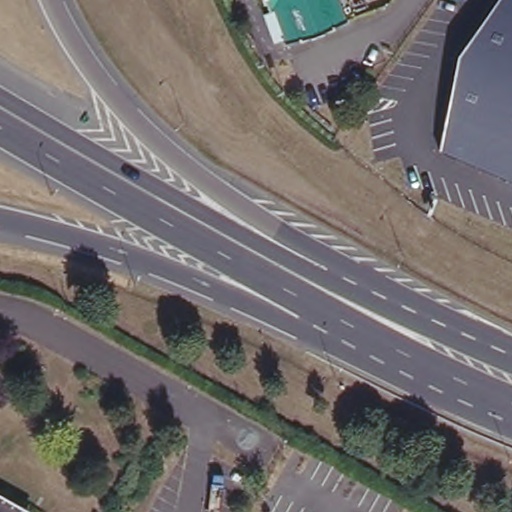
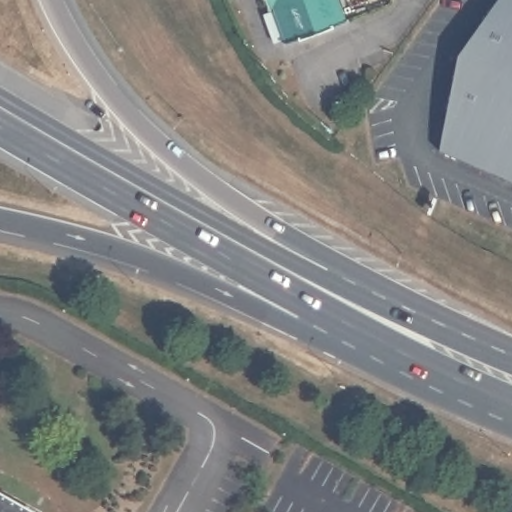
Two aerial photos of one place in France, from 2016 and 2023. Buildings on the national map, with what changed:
unchanged [(346,17),(347,20),(285,41),(283,36),(273,40),(264,12),(275,8),(272,3),(268,5),(266,0),(340,0),(346,17)]
unchanged [(438,150),(456,55),(495,0),(512,0),(512,181),(438,150)]
unchanged [(31,512),(0,512),(0,489),(34,507),(31,512)]

